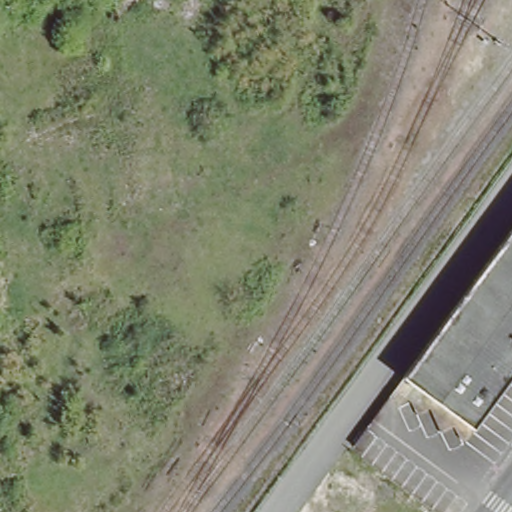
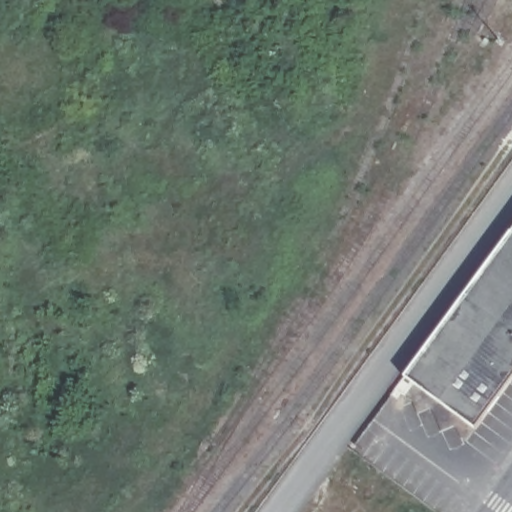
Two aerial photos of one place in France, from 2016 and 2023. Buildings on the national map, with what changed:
unchanged [(471,430),(400,376),(512,223),(512,374),(471,430)]
unchanged [(457,449),(386,396),(400,376),(471,430),(457,449)]

